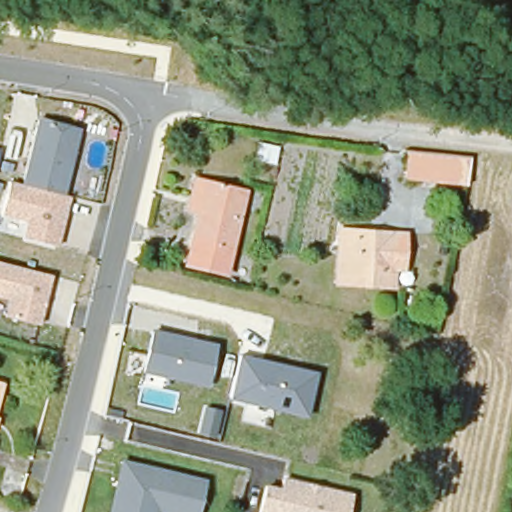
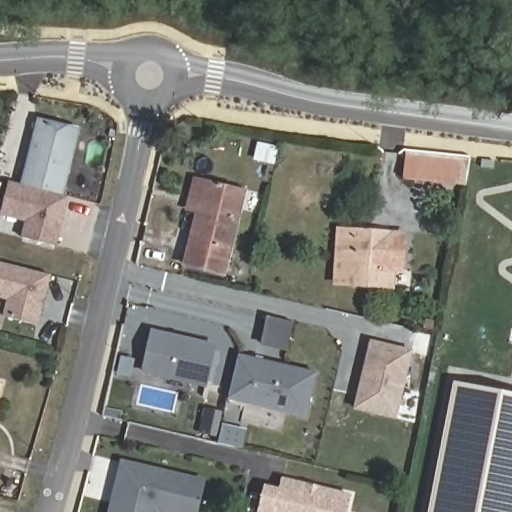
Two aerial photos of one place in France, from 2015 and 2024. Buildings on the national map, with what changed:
unchanged [(24,239),(27,223),(2,217),(10,182),(24,184),(40,118),(81,127),(65,195),(72,197),(59,247),(24,239)]
unchanged [(398,150),(473,156),(469,187),(396,177),(398,150)]
unchanged [(222,268),(183,258),(201,185),(241,195),(222,268)]
unchanged [(367,287),(335,285),(339,230),(404,235),(402,268),(397,268),(396,288),(367,287)]
unchanged [(5,317),(8,303),(0,300),(0,262),(53,276),(39,326),(5,317)]
new [(269,317),(293,323),(287,350),(263,343),(269,317)]
unchanged [(216,343),(208,386),(141,371),(152,329),(216,343)]
new [(374,343),(414,353),(398,420),(358,410),(374,343)]
unchanged [(307,417),(230,400),(241,355),(317,372),(307,417)]
new [(452,387),(506,397),(484,512),(429,512),(452,387)]
new [(507,393),(512,394),(512,512),(484,512),(506,397),(507,393)]
unchanged [(202,512),(110,512),(122,461),(208,480),(202,512)]
unchanged [(265,485),(280,488),(283,477),(355,494),(351,512),(260,512),(265,485)]

